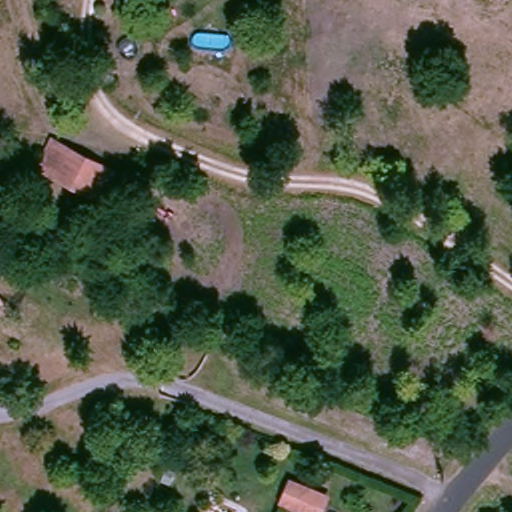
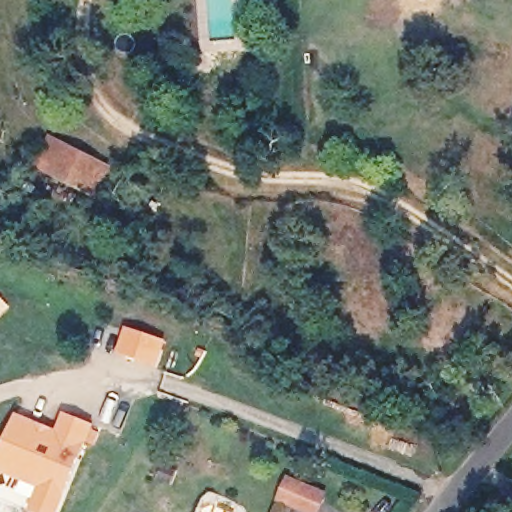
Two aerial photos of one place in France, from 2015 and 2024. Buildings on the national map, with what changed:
unchanged [(108,168),(96,197),(47,177),(59,148),(108,168)]
new [(18,414),(56,428),(62,412),(95,425),(93,445),(88,445),(60,512),(25,512),(35,488),(0,474),(0,461),(18,414)]
unchanged [(292,484),(292,483),(327,498),(322,512),(309,512),(285,502),(292,484)]

